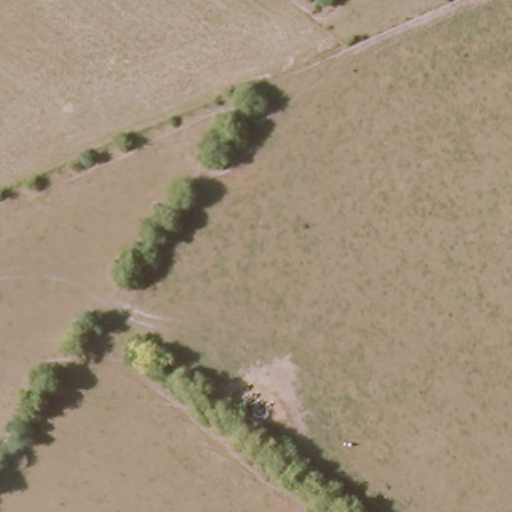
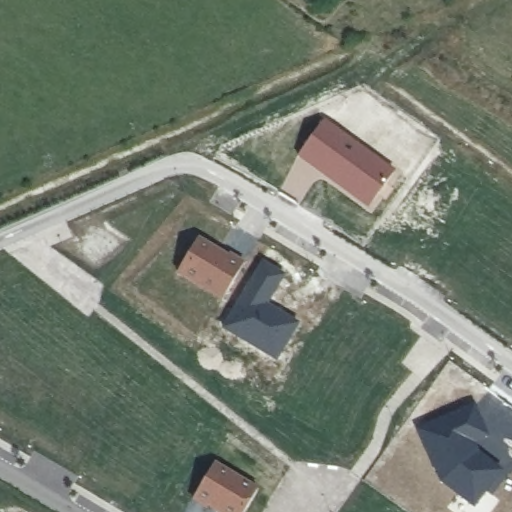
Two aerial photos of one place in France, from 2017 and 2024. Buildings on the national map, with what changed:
new [(297,157),(324,119),(395,170),(367,209),(297,157)]
new [(175,275),(198,237),(228,254),(228,253),(244,262),(221,301),(175,275)]
new [(220,329),(261,261),(285,275),(267,305),(299,324),(275,363),(220,329)]
new [(440,482),(415,427),(475,404),(488,438),(475,443),(478,450),(502,471),(473,509),(440,482)]
new [(208,509),(207,511),(191,501),(215,461),(258,487),(244,512),(213,512),(208,509)]

